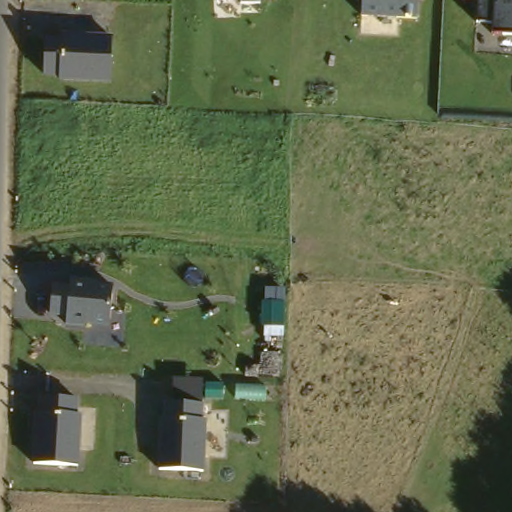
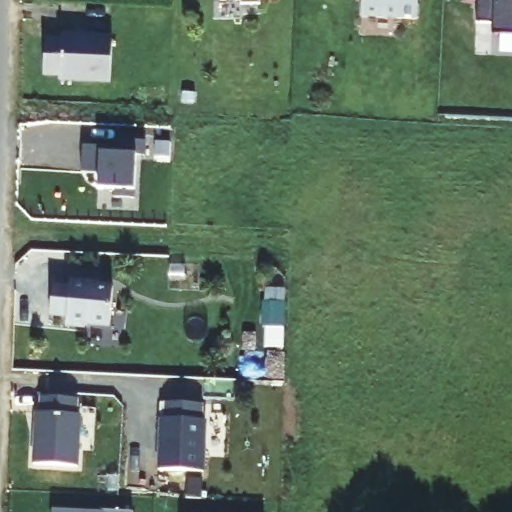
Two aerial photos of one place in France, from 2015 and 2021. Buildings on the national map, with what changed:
unchanged [(218,1),(217,0),(251,0),(218,1)]
unchanged [(418,21),(361,17),(362,0),(419,0),(418,21)]
unchanged [(492,32),(491,24),(476,23),(476,2),(464,2),(465,0),(512,0),(512,33),(492,32)]
unchanged [(110,79),(59,75),(59,71),(43,71),(46,37),(61,38),(62,32),(113,33),(110,79)]
new [(83,139),(102,140),(101,146),(120,147),(121,140),(146,142),(146,156),(137,156),(135,199),(116,198),(116,190),(98,189),(99,174),(82,174),(83,139)]
unchanged [(109,328),(84,326),(83,332),(65,330),(65,319),(50,318),(51,286),(67,287),(68,283),(113,286),(109,328)]
unchanged [(266,302),(286,303),(284,328),(264,327),(266,302)]
unchanged [(201,379),(199,421),(206,422),(204,471),(158,469),(160,415),(164,415),(165,400),(171,400),(173,379),(201,379)]
unchanged [(77,414),(81,415),(78,466),(32,465),(34,411),(38,411),(38,396),(78,397),(77,414)]
new [(52,512),(53,508),(109,512),(52,512)]

